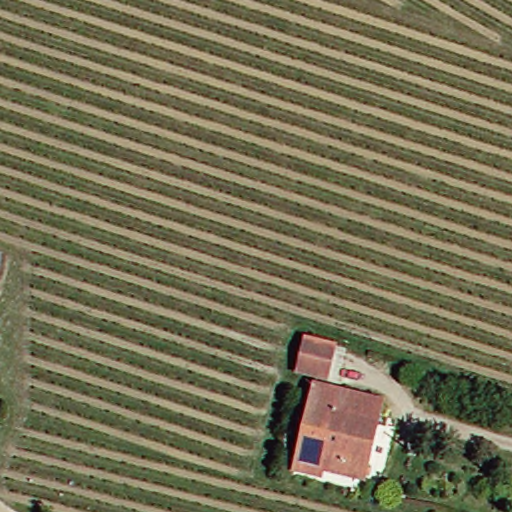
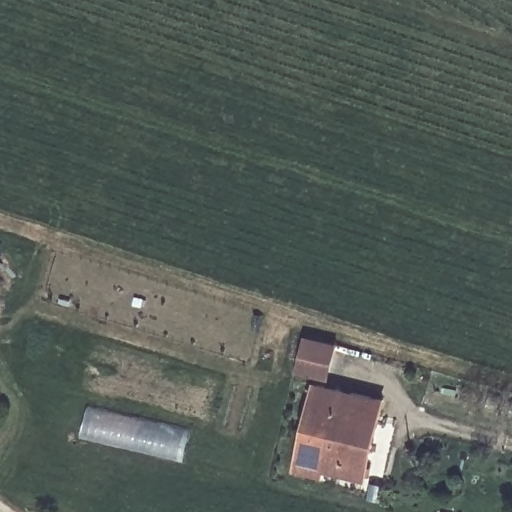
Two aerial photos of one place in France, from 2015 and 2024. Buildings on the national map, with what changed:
unchanged [(332,340),(323,376),(311,372),(297,367),(305,332),(320,336),(332,340)]
unchanged [(323,461),(318,472),(292,465),(314,379),(381,395),(361,472),(323,461)]
new [(190,430),(182,463),(77,438),(87,405),(190,430)]

